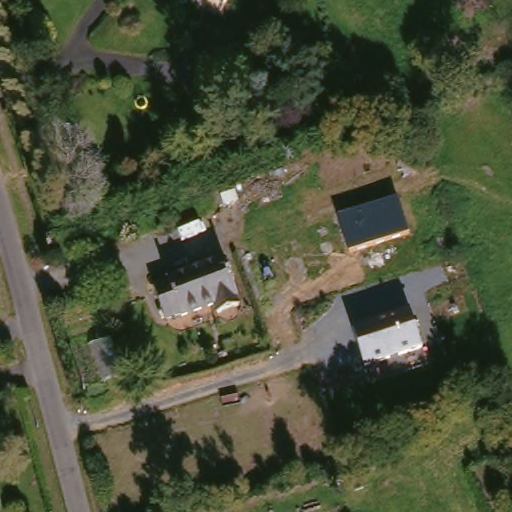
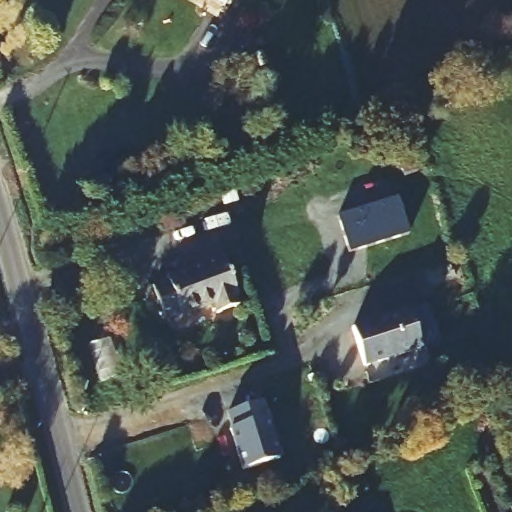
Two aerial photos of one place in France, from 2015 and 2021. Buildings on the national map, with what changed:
unchanged [(217,0),(225,0),(223,3),(217,0)]
unchanged [(398,197),(409,234),(349,252),(337,214),(398,197)]
unchanged [(164,280),(162,274),(219,255),(235,304),(217,310),(213,304),(177,317),(175,312),(162,317),(150,285),(164,280)]
unchanged [(423,348),(364,365),(352,326),(409,306),(423,348)]
new [(262,398),(280,456),(242,467),(230,426),(232,425),(227,409),(262,398)]
unchanged [(512,509),(512,512),(506,512),(506,511),(512,509)]

